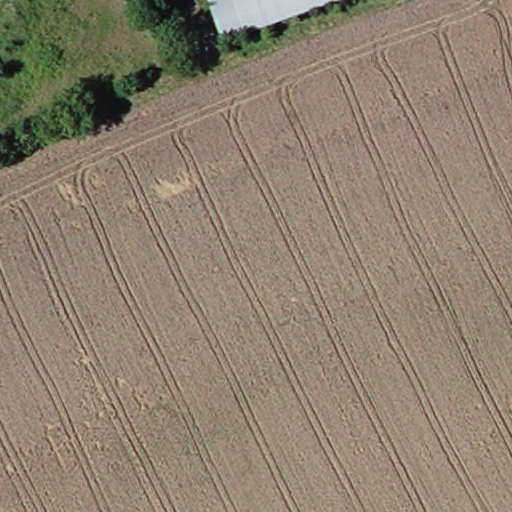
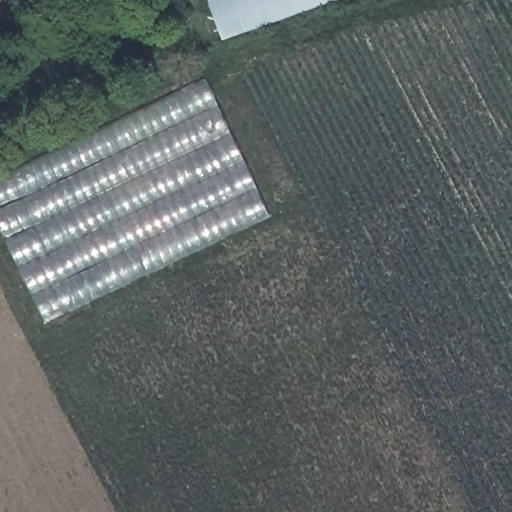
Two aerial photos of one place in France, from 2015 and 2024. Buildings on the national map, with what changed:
unchanged [(213,0),(349,0),(231,42),(212,0),(213,0)]
new [(0,224),(0,177),(205,79),(270,216),(47,322),(0,224)]

